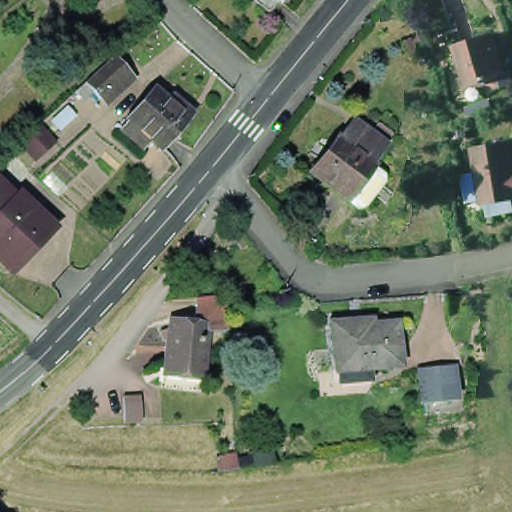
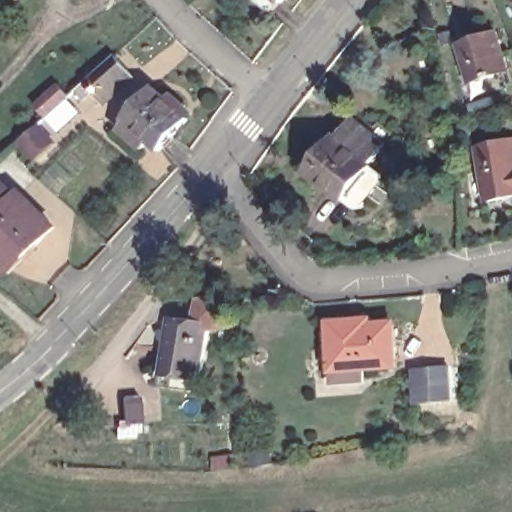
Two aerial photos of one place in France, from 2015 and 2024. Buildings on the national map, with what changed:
unchanged [(261,0),(274,0),(268,6),(261,0)]
unchanged [(512,69),(476,81),(463,43),(500,30),(512,66),(512,69)]
unchanged [(101,106),(91,96),(82,104),(75,96),(115,61),(131,79),(101,106)]
unchanged [(110,129),(120,116),(118,115),(145,82),(160,95),(165,89),(179,102),(175,107),(181,113),(154,146),(142,135),(131,148),(110,129)]
unchanged [(370,182),(347,208),(341,209),(331,200),(318,190),(303,177),(296,171),(325,137),(327,139),(343,120),(373,145),(357,164),(360,166),(370,175),(370,182)]
unchanged [(476,152),(512,144),(512,201),(488,207),(476,152)]
unchanged [(8,202),(0,210),(0,193),(8,202)]
unchanged [(0,268),(0,210),(8,202),(16,195),(50,228),(18,260),(20,262),(7,275),(3,271),(0,268)]
unchanged [(331,382),(330,356),(335,355),(333,319),(354,318),(355,323),(396,320),(397,321),(400,363),(368,365),(370,380),(331,382)]
unchanged [(167,373),(173,324),(213,330),(206,379),(205,387),(166,381),(167,373)]
unchanged [(450,366),(453,401),(418,404),(415,370),(450,366)]
unchanged [(122,397),(139,397),(140,422),(123,422),(122,397)]

